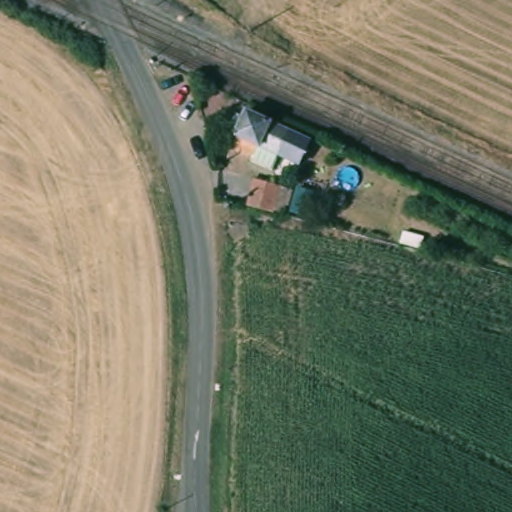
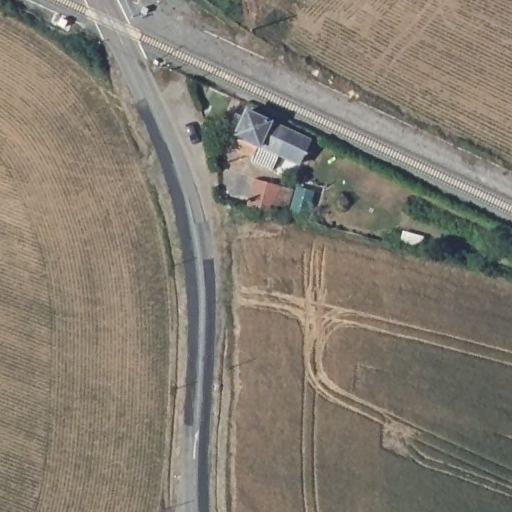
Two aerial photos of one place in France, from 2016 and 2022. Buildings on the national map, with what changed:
unchanged [(246,159),(249,154),(233,146),(239,135),(236,133),(250,104),(287,122),(273,151),(265,168),(246,159)]
unchanged [(312,144),(305,163),(280,152),(292,133),(312,144)]
unchanged [(288,187),(281,213),(243,203),(250,177),(288,187)]

